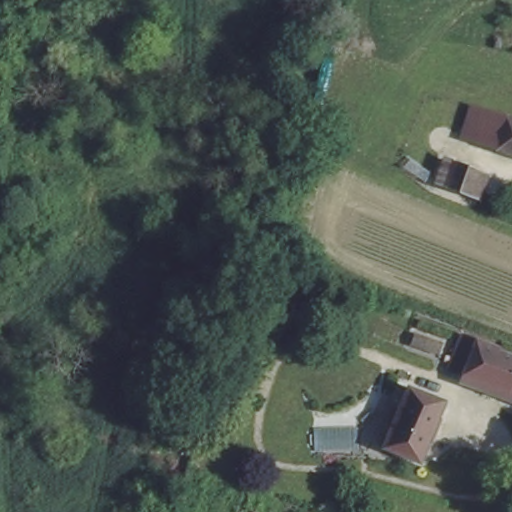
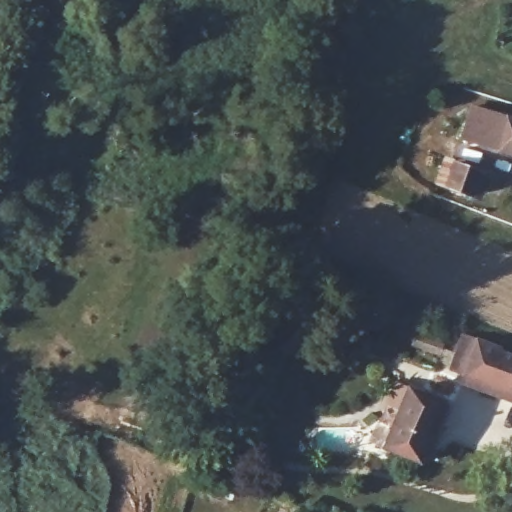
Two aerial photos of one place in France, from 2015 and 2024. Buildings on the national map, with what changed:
unchanged [(462,137),(470,111),(484,115),(512,122),(512,151),(477,141),(462,137)]
unchanged [(437,186),(446,157),(465,163),(489,170),(481,200),(437,186)]
unchanged [(488,339),(485,345),(506,352),(503,361),(511,364),(512,364),(512,397),(502,393),(493,390),(496,383),(436,362),(447,327),(488,339)]
unchanged [(389,449),(396,423),(405,394),(436,402),(427,433),(419,458),(389,449)]

